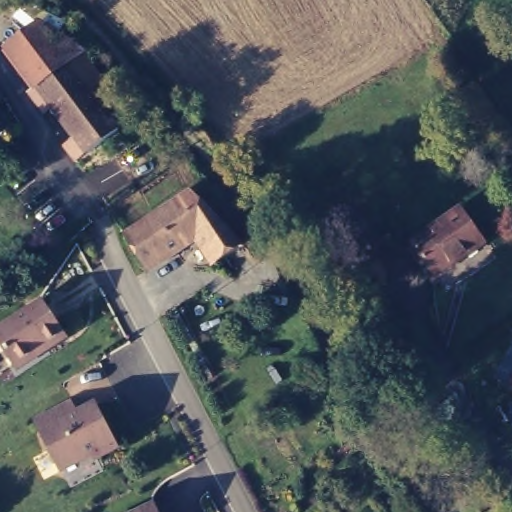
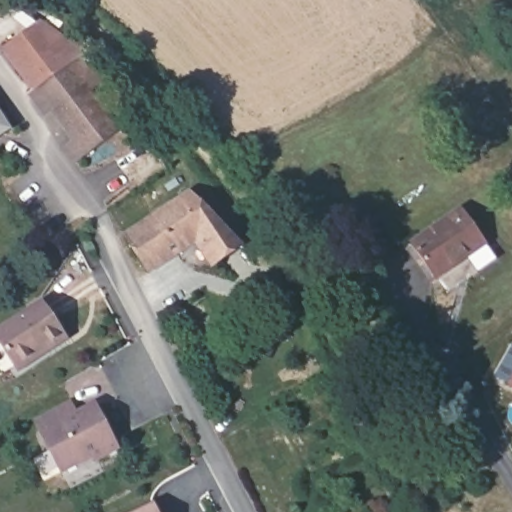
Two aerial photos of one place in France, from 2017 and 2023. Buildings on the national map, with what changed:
unchanged [(64,63),(108,137),(76,156),(32,82),(30,83),(7,43),(43,21),(79,54),(64,63)]
unchanged [(197,250),(150,277),(125,234),(187,186),(245,244),(212,269),(197,250)]
unchanged [(460,209),(484,244),(435,279),(410,245),(460,209)]
unchanged [(45,354),(42,349),(15,367),(0,344),(0,313),(17,303),(24,315),(39,306),(62,343),(45,354)]
unchanged [(43,428),(92,405),(112,448),(95,456),(92,452),(62,466),(43,428)]
unchanged [(150,506),(153,512),(135,512),(150,506)]

